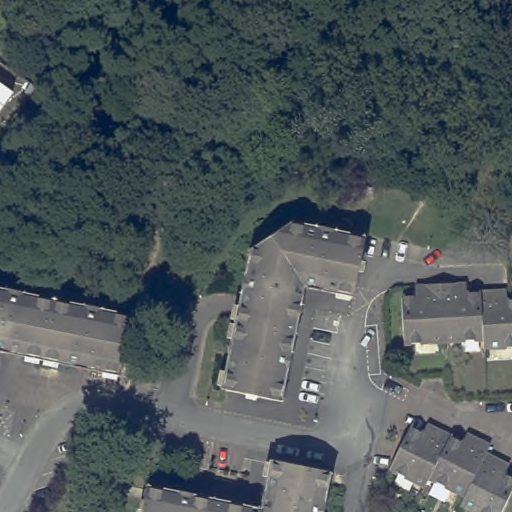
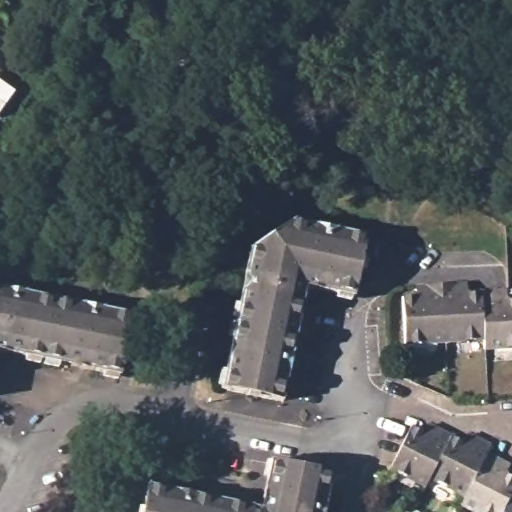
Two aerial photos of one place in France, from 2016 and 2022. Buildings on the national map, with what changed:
unchanged [(0,108),(0,84),(11,92),(0,108)]
unchanged [(219,390),(248,251),(292,222),(364,237),(352,297),(304,288),(281,401),(219,390)]
unchanged [(460,284),(461,291),(483,290),(486,337),(448,339),(444,285),(460,284)]
unchanged [(406,341),(404,295),(428,292),(428,285),(444,285),(448,339),(406,341)]
unchanged [(123,378),(0,353),(0,288),(136,316),(123,378)]
unchanged [(499,289),(499,297),(512,297),(512,345),(487,345),(486,337),(483,290),(499,289)]
unchanged [(428,488),(393,470),(414,428),(436,439),(439,431),(453,438),(432,479),(428,488)]
unchanged [(474,449),(479,441),(493,448),(488,456),(468,497),(432,479),(453,438),(474,449)]
unchanged [(499,472),(512,479),(512,498),(505,512),(475,512),(464,506),(468,497),(488,456),(503,464),(499,472)]
unchanged [(265,505),(274,457),(334,469),(325,512),(144,512),(150,482),(265,505)]

